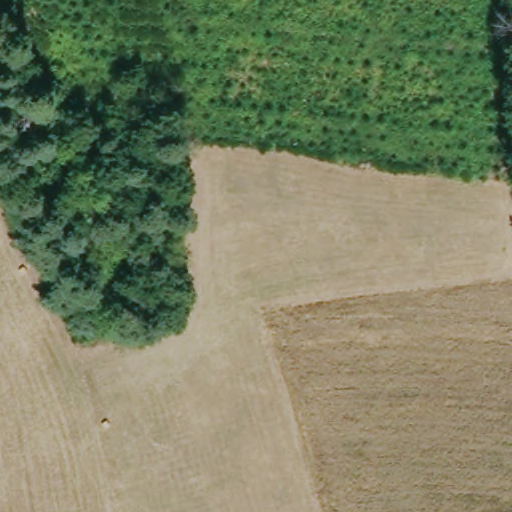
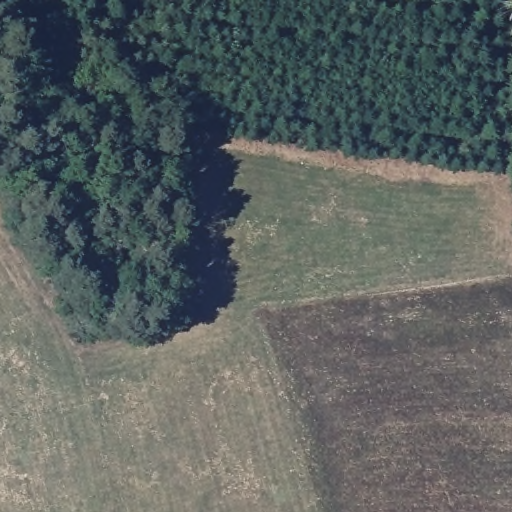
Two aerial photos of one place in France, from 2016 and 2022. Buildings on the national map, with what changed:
[]

